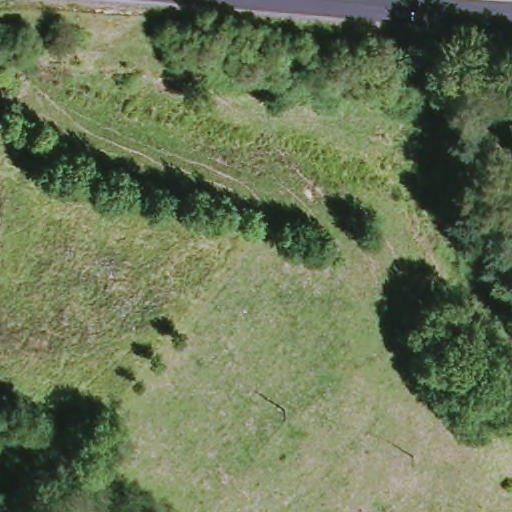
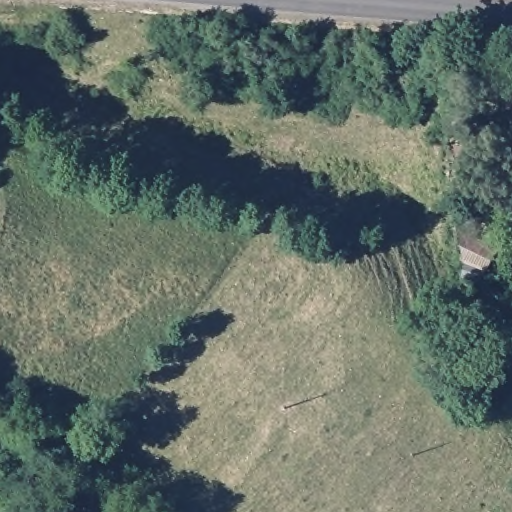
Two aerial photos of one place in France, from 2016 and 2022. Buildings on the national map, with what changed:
unchanged [(512,118),(512,132),(507,120),(512,118)]

